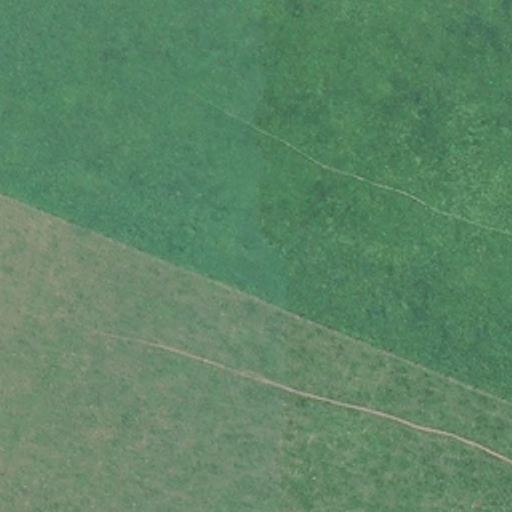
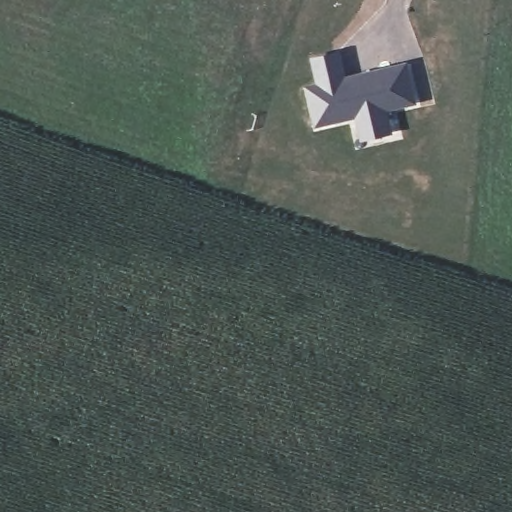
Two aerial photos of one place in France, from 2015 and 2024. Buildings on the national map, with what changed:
new [(313,56),(341,50),(347,76),(362,73),(407,63),(416,100),(386,107),(389,119),(362,125),(359,114),(318,123),(309,85),(319,83),(313,56)]
new [(359,114),(362,125),(389,119),(386,107),(416,100),(417,106),(398,111),(402,129),(355,140),(350,122),(320,129),(318,123),(359,114)]

